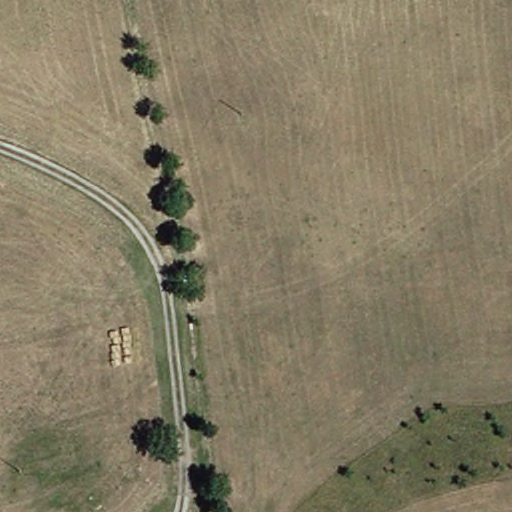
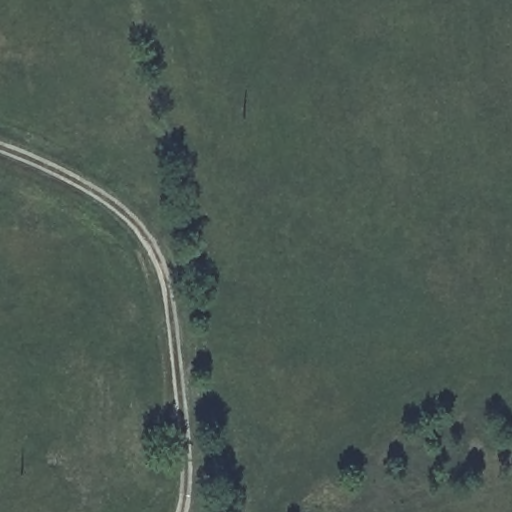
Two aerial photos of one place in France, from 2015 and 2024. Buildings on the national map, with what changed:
[]

